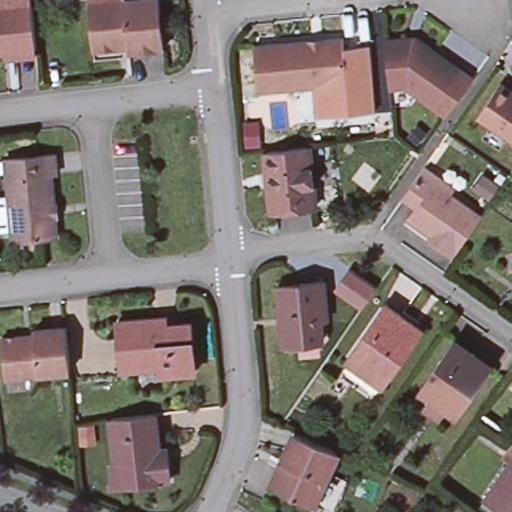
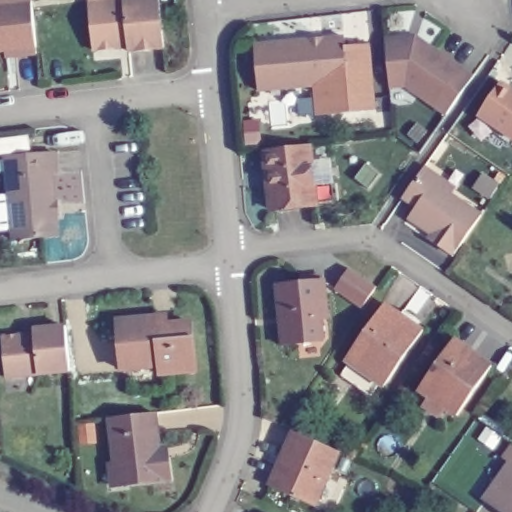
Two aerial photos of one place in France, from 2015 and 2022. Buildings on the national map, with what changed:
unchanged [(0,47),(0,1),(1,1),(1,0),(37,0),(41,43),(41,49),(11,51),(11,46),(0,47)]
unchanged [(88,4),(129,0),(159,0),(163,48),(128,51),(128,44),(119,45),(120,47),(93,50),(88,4)]
unchanged [(463,75),(442,105),(429,96),(398,74),(384,75),(380,35),(379,30),(401,27),(402,31),(409,30),(411,27),(456,59),(468,67),(463,75)]
unchanged [(304,80),(248,85),(244,40),(299,35),(299,34),(300,39),(312,38),(311,32),(313,32),(313,34),(334,32),(334,42),(338,77),(304,80)]
unchanged [(359,40),(364,105),(306,110),(304,80),(338,77),(334,42),(359,40)]
unchanged [(512,90),(512,139),(478,116),(501,82),(512,90)]
unchanged [(271,210),(264,151),(309,145),(316,205),(271,210)]
unchanged [(8,179),(10,179),(8,157),(55,153),(56,173),(51,174),(54,205),(55,213),(58,236),(13,240),(8,179)]
unchanged [(409,217),(416,206),(403,197),(424,167),(438,176),(455,189),(451,195),(481,215),(459,247),(453,256),(428,240),(432,234),(409,217)]
unchanged [(350,268),(376,287),(362,307),(336,289),(350,268)]
unchanged [(327,318),(321,318),(323,338),(321,341),(283,345),(277,285),(324,280),(327,318)]
unchanged [(346,370),(354,358),(351,355),(390,298),(429,325),(389,382),(384,379),(376,391),(346,370)]
unchanged [(118,320),(158,316),(158,325),(190,322),(195,372),(161,375),(161,366),(122,370),(118,320)]
unchanged [(70,371),(69,371),(5,377),(1,337),(21,335),(25,338),(34,338),(33,330),(65,326),(70,371)]
unchanged [(458,416),(445,407),(444,403),(436,398),(431,398),(419,390),(454,340),(492,366),(458,416)]
unchanged [(108,465),(115,464),(110,418),(154,413),(159,449),(166,448),(168,457),(170,479),(125,484),(110,486),(108,465)]
unchanged [(294,432),(339,451),(314,506),(270,486),(294,432)]
unchanged [(484,501),(511,462),(512,463),(512,512),(499,512),(497,510),(484,501)]

